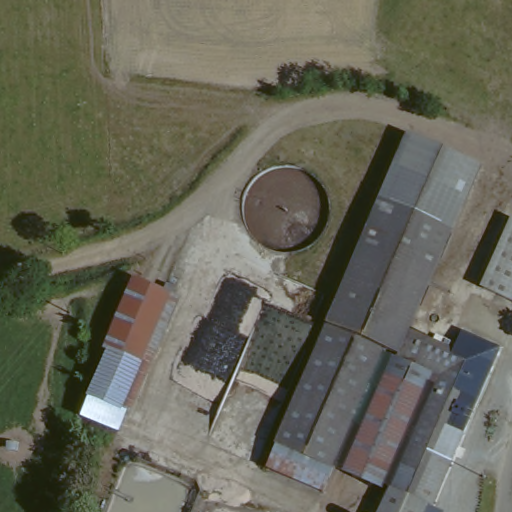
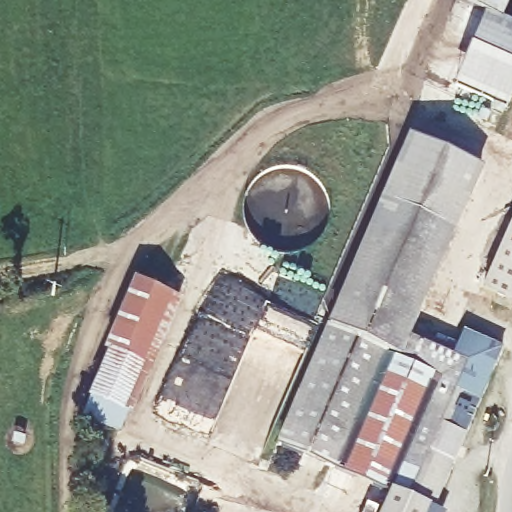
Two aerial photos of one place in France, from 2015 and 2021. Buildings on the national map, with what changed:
new [(512,23),(512,101),(509,109),(455,86),(485,13),(456,0),(511,0),(503,19),(512,23)]
unchanged [(408,132),(486,164),(453,231),(386,205),(380,202),(408,132)]
unchanged [(386,205),(453,231),(409,336),(471,362),(429,456),(406,508),(383,497),(333,475),(321,500),(264,475),(380,202),(386,205)]
unchanged [(512,218),(512,306),(473,292),(506,215),(512,218)]
unchanged [(122,418),(92,406),(112,359),(104,356),(133,286),(170,303),(122,418)]
unchanged [(429,456),(451,465),(429,512),(375,512),(383,497),(406,508),(429,456)]

